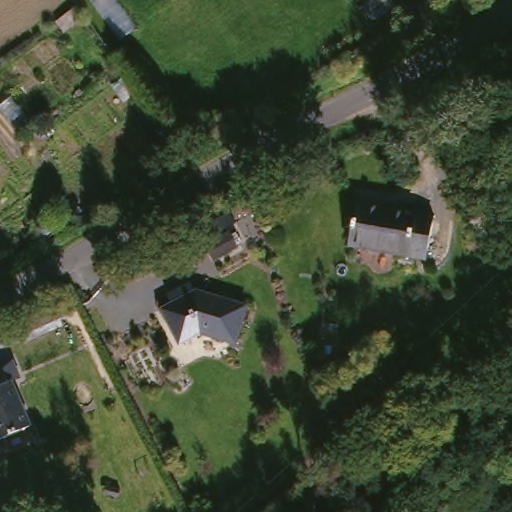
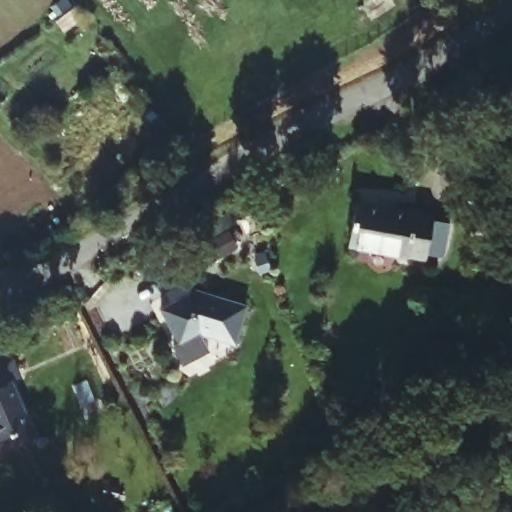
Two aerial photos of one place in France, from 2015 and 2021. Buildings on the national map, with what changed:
unchanged [(354,243),(362,198),(438,210),(429,255),(354,243)]
unchanged [(226,230),(233,243),(211,255),(203,243),(226,230)]
unchanged [(225,299),(249,307),(239,337),(237,346),(202,334),(181,344),(163,309),(199,291),(225,299)]
unchanged [(1,437),(0,434),(0,362),(2,362),(8,377),(13,375),(33,424),(1,437)]

